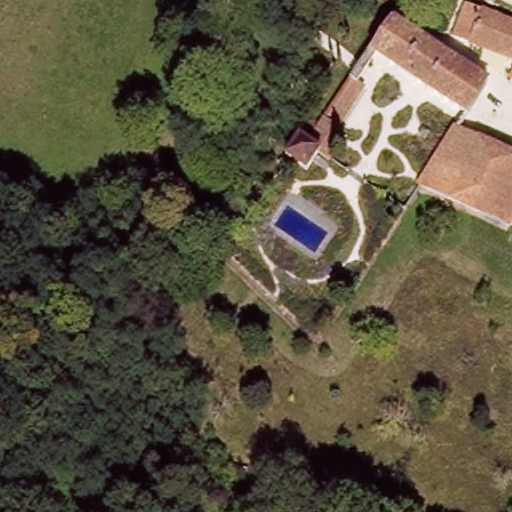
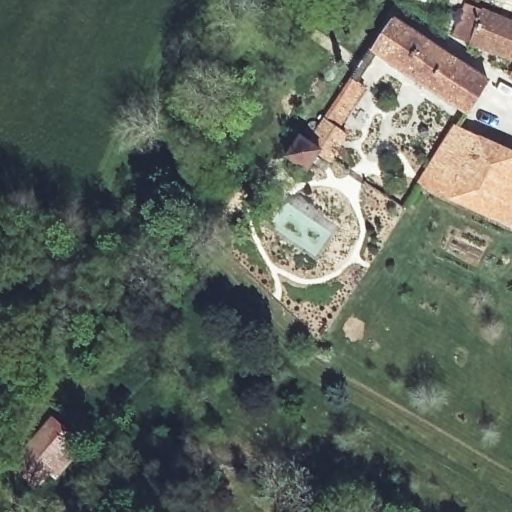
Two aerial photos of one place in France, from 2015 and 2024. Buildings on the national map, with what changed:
unchanged [(463,5),(512,23),(512,58),(449,37),(455,28),(463,5)]
unchanged [(492,76),(470,111),(465,109),(370,51),(390,18),(492,76)]
unchanged [(507,74),(512,59),(512,76),(507,74)]
unchanged [(293,133),(308,142),(313,136),(304,129),(312,118),(321,123),(349,80),(360,89),(337,126),(347,135),(335,151),(328,160),(318,156),(304,172),(278,152),(293,133)]
unchanged [(414,182),(447,127),(512,154),(512,201),(502,222),(414,182)]
new [(11,464),(55,415),(81,440),(39,489),(11,464)]

